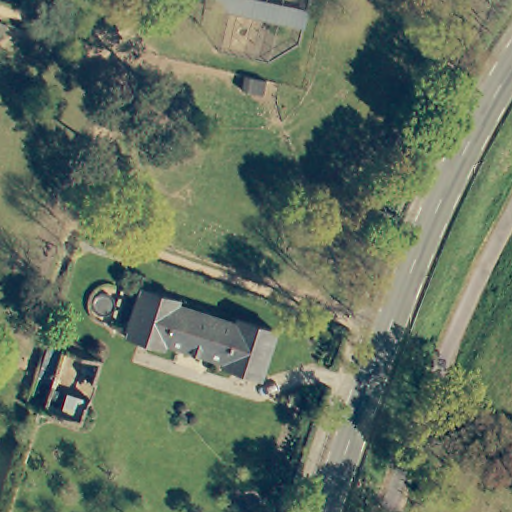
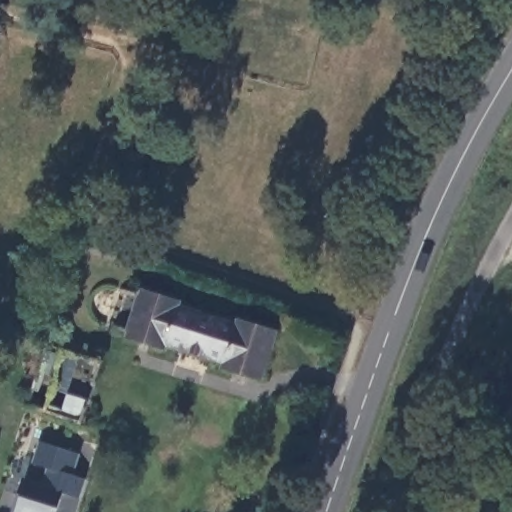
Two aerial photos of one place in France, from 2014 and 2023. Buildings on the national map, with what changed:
new [(305,30),(211,10),(213,0),(257,0),(310,11),(305,30)]
unchanged [(129,329),(112,325),(123,290),(140,295),(141,290),(180,301),(180,306),(237,323),(239,318),(278,330),(266,376),(225,364),(227,358),(169,341),(167,347),(126,335),(129,329)]
new [(85,478),(76,512),(17,512),(25,479),(41,483),(45,468),(30,464),(36,441),(80,453),(74,475),(85,478)]

